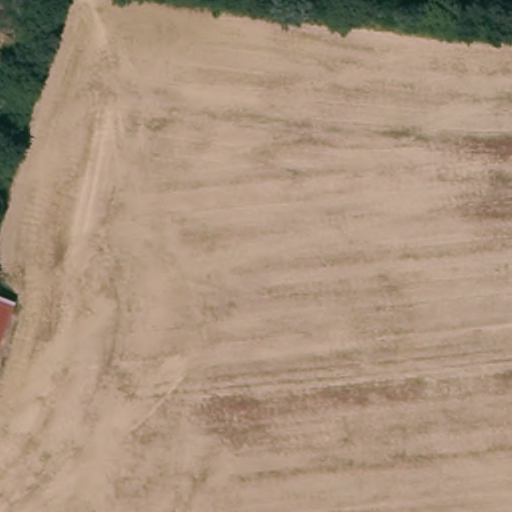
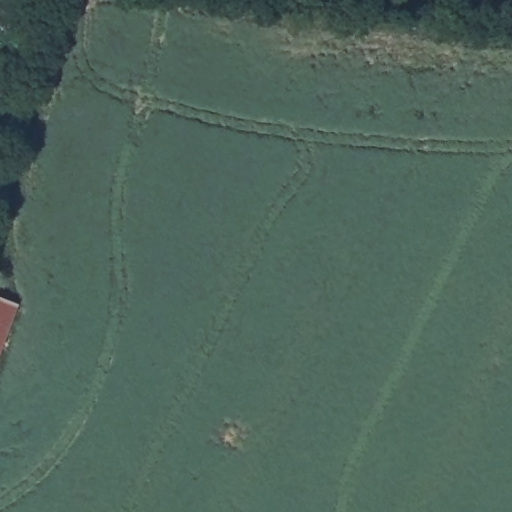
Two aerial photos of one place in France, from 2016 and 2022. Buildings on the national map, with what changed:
unchanged [(0,344),(0,300),(15,305),(0,344)]

